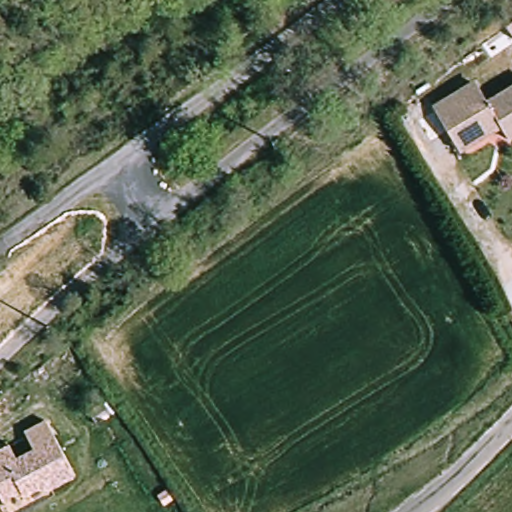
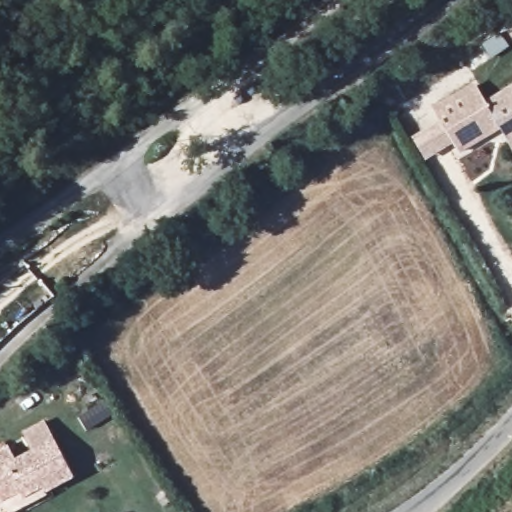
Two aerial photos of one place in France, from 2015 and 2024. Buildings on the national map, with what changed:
unchanged [(502,139),(457,160),(426,109),(471,80),(483,98),(512,82),(512,148),(511,149),(502,139)]
unchanged [(4,442),(13,455),(49,430),(73,465),(47,483),(43,477),(24,491),(21,485),(3,497),(0,493),(0,445),(4,442)]

